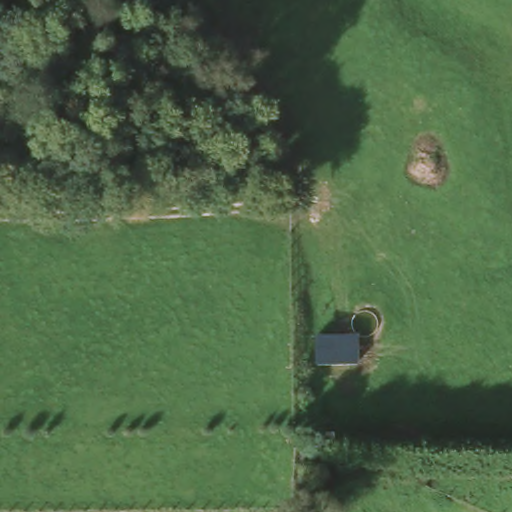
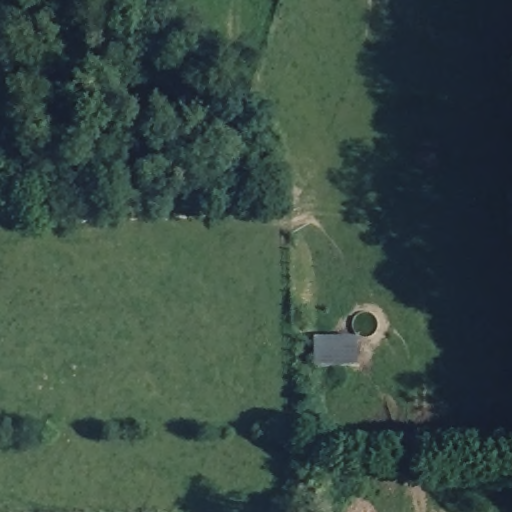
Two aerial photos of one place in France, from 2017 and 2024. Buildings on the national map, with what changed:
unchanged [(362,335),(360,364),(317,365),(319,335),(362,335)]

